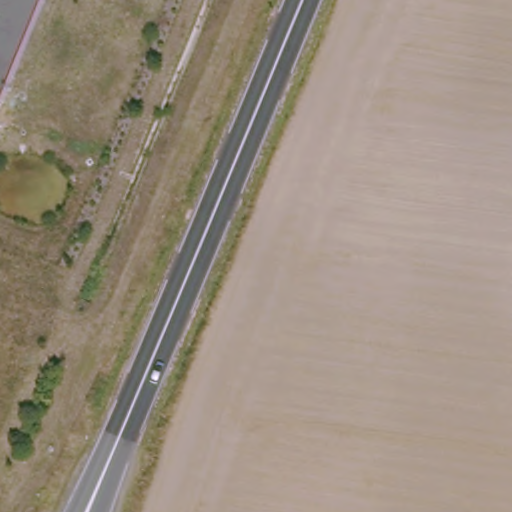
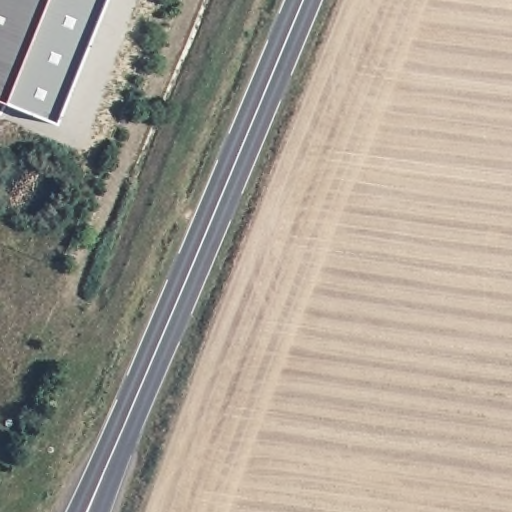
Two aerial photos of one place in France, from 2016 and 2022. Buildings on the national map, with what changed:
unchanged [(4,100),(0,99),(0,0),(46,0),(4,100)]
new [(62,120),(4,100),(46,0),(110,0),(62,120)]

